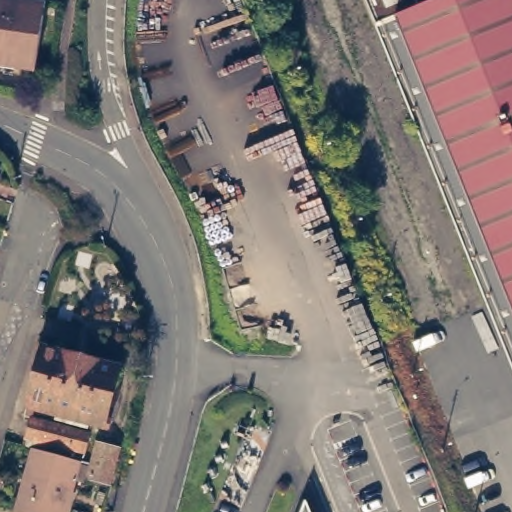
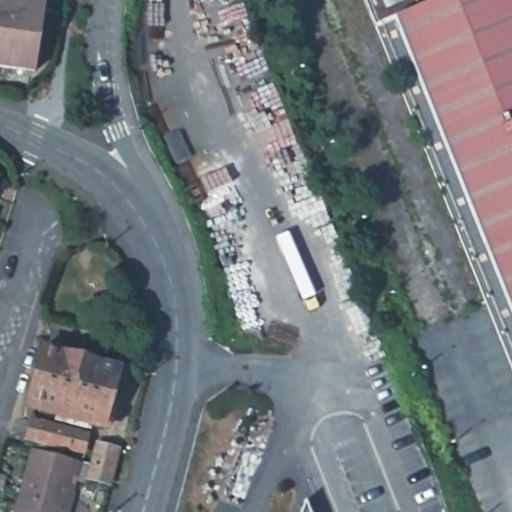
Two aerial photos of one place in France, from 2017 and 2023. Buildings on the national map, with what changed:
unchanged [(37,68),(17,65),(17,58),(0,55),(0,0),(8,0),(46,6),(37,68)]
unchanged [(375,20),(367,0),(420,0),(421,2),(424,0),(512,0),(512,305),(395,12),(375,20)]
unchanged [(0,184),(0,175),(3,176),(0,184)]
unchanged [(74,409),(61,407),(62,400),(35,393),(33,399),(32,404),(25,403),(27,398),(43,338),(121,358),(116,377),(121,379),(112,413),(76,404),(74,409)]
unchanged [(67,448),(62,447),(56,445),(40,440),(23,434),(30,410),(89,425),(84,447),(80,451),(67,448)]
unchanged [(87,469),(92,455),(97,433),(119,439),(110,474),(87,469)]
unchanged [(40,440),(56,445),(62,447),(67,448),(80,451),(84,452),(67,512),(56,512),(29,505),(22,503),(31,472),(40,440)]
unchanged [(316,512),(303,512),(310,495),(316,512)]

